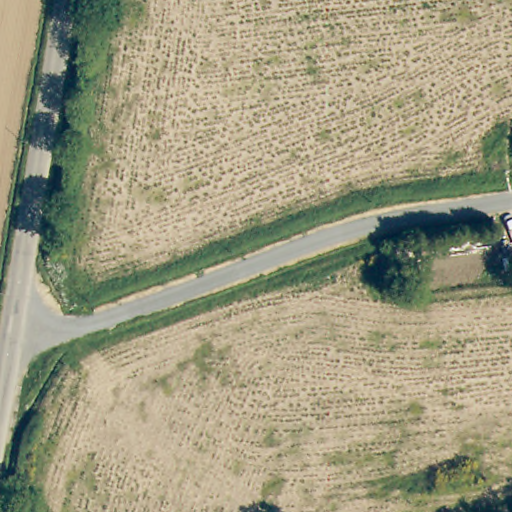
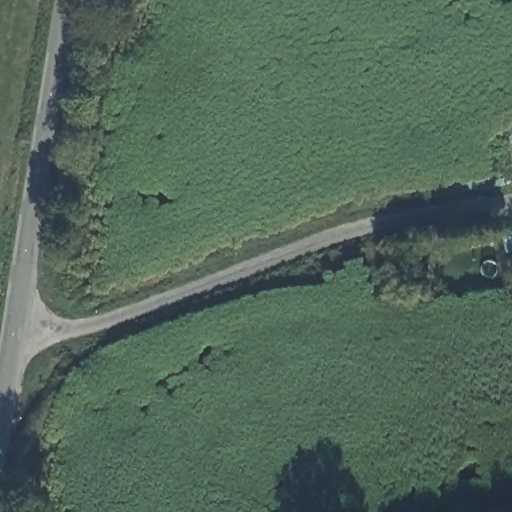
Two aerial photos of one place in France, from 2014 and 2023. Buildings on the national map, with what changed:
[]

